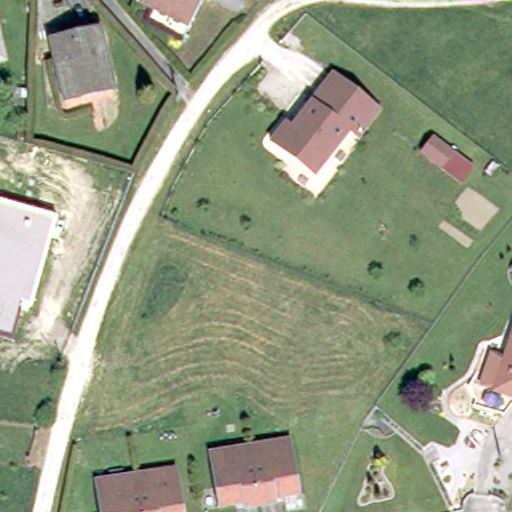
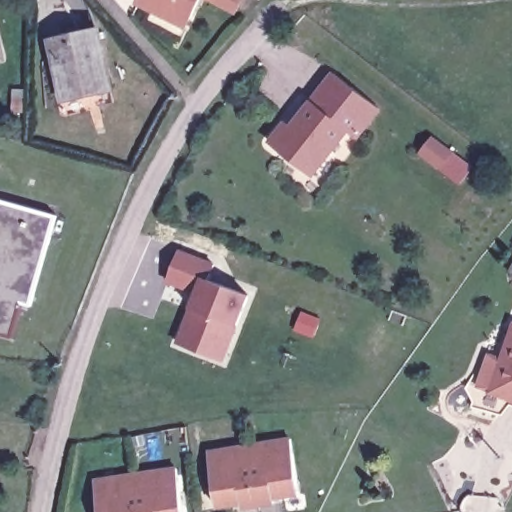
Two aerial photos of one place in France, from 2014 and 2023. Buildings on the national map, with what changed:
unchanged [(186,28),(139,5),(142,0),(201,0),(186,28)]
unchanged [(232,12),(209,0),(239,0),(232,12)]
unchanged [(52,34),(99,27),(108,87),(62,94),(52,34)]
unchanged [(376,110),(351,140),(343,134),(308,180),(264,147),(279,126),(286,131),(329,76),(376,110)]
unchanged [(434,137),(454,152),(442,168),(422,153),(434,137)]
unchanged [(28,307),(20,305),(8,339),(0,336),(0,199),(60,222),(28,307)]
new [(209,279),(251,295),(238,328),(225,361),(178,342),(190,308),(196,293),(166,282),(179,247),(215,261),(209,279)]
unchanged [(492,356),(507,361),(512,343),(512,400),(484,391),(479,389),(484,377),(492,356)]
unchanged [(289,444),(298,500),(272,506),(273,511),(268,512),(239,512),(239,511),(235,512),(214,512),(204,459),(289,444)]
unchanged [(172,476),(178,512),(93,512),(89,490),(172,476)]

